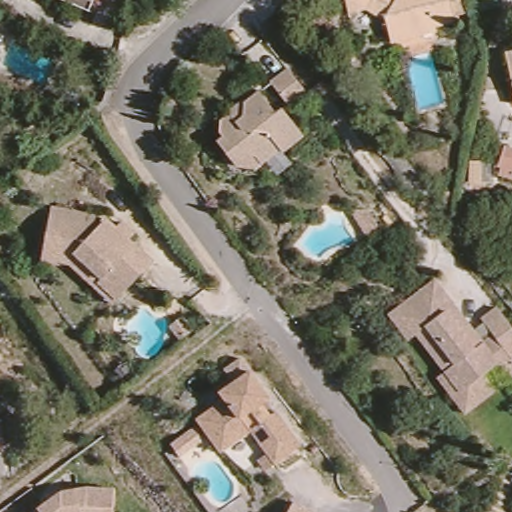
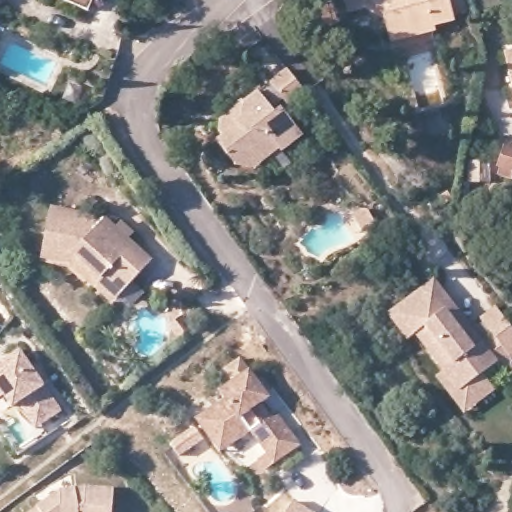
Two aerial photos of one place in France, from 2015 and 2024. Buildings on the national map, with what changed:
unchanged [(65,0),(98,0),(93,12),(65,0)]
unchanged [(393,44),(388,23),(367,10),(348,15),(344,0),(462,0),(466,14),(455,16),(456,22),(437,28),(438,33),(415,38),(393,44)]
unchanged [(287,74),(302,96),(288,106),(272,85),(287,74)]
unchanged [(260,170),(258,171),(235,167),(227,157),(216,141),(221,138),(218,132),(220,123),(231,115),(228,112),(242,103),(244,105),(245,105),(259,94),(276,114),(281,110),(303,139),(282,154),(279,150),(258,164),(261,168),(260,170)]
unchanged [(481,164),(481,184),(472,184),(473,163),(481,164)]
unchanged [(80,257),(51,250),(54,239),(62,202),(104,210),(112,217),(116,213),(125,220),(130,215),(143,228),(138,233),(162,255),(126,293),(122,297),(80,257)]
unchanged [(478,377),(456,393),(443,374),(414,335),(413,337),(405,342),(387,317),(394,312),(432,284),(470,334),(483,324),(481,320),(494,310),(507,329),(512,335),(512,360),(499,369),(495,365),(478,377)]
new [(14,358),(54,416),(31,434),(16,410),(11,413),(3,399),(0,401),(0,366),(14,358)]
unchanged [(216,445),(197,416),(225,397),(220,389),(249,369),(268,396),(262,399),(271,412),(276,408),(300,444),(274,462),(250,429),(246,432),(220,451),(216,445)]
unchanged [(491,394),(461,416),(434,381),(443,374),(456,393),(478,377),(491,394)]
demolished [(8,414),(9,445),(0,446),(0,415),(8,414)]
unchanged [(61,491),(91,484),(116,487),(114,512),(31,512),(61,491)]
unchanged [(307,512),(287,512),(291,504),(307,512)]

